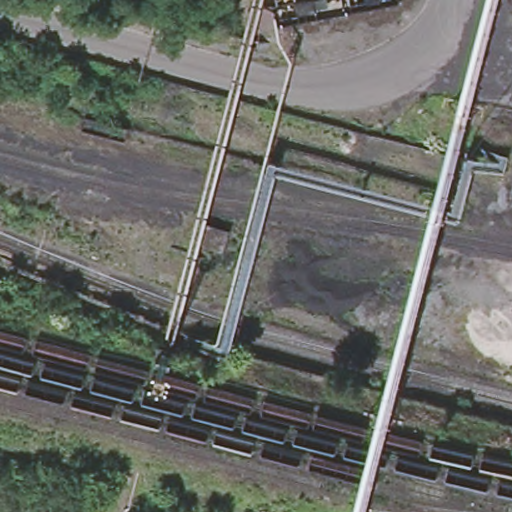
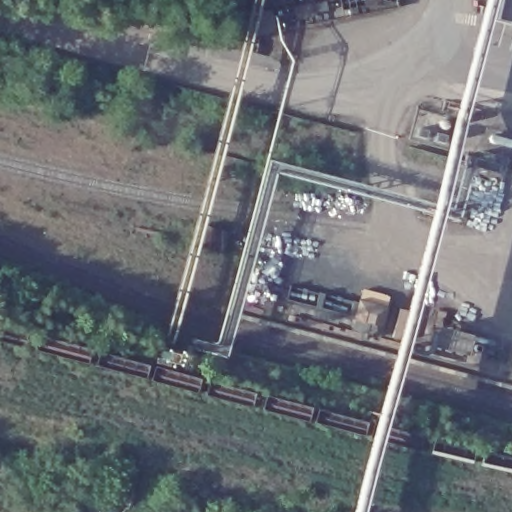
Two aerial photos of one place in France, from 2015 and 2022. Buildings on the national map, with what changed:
unchanged [(452,119),(447,142),(428,138),(432,115),(452,119)]
unchanged [(499,133),(509,135),(511,150),(509,158),(504,157),(470,147),(475,127),(499,133)]

